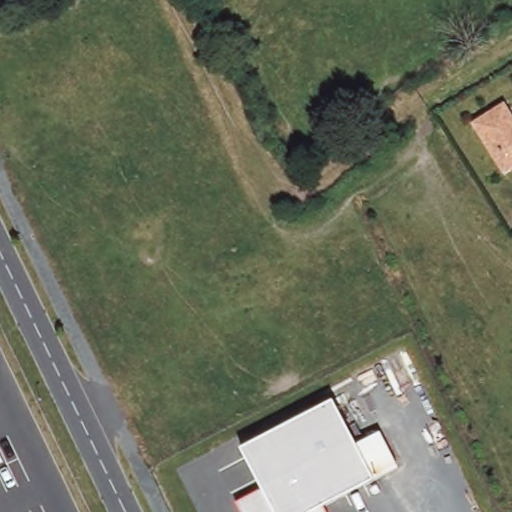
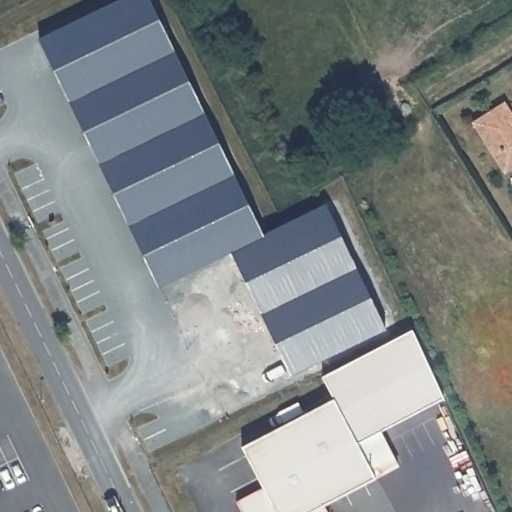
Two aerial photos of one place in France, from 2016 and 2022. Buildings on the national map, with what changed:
new [(110,187),(87,139),(50,64),(39,40),(55,32),(121,0),(150,0),(263,236),(174,279),(158,286),(146,262),(110,187)]
unchanged [(468,125),(501,105),(512,123),(512,170),(500,177),(468,125)]
new [(411,331),(443,398),(380,432),(356,446),(333,401),(321,377),(411,331)]
unchanged [(241,448),(333,401),(356,446),(380,432),(399,467),(374,478),(321,506),(324,512),(242,512),(237,503),(264,492),(241,448)]

